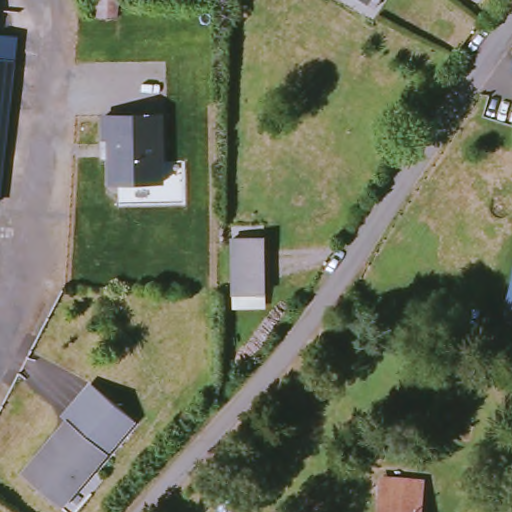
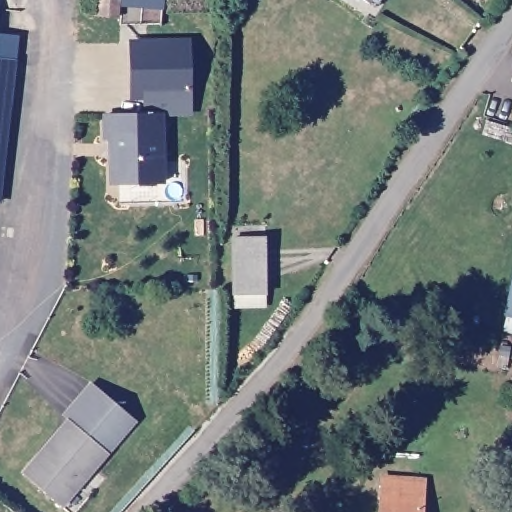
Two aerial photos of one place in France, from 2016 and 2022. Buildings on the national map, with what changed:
unchanged [(104,14),(104,0),(124,0),(123,15),(123,16),(104,17),(104,14)]
unchanged [(374,0),(371,5),(363,0),(374,0)]
new [(128,40),(191,39),(191,100),(130,101),(128,40)]
unchanged [(0,112),(0,56),(6,57),(0,112)]
unchanged [(107,141),(101,141),(101,115),(164,115),(166,185),(108,185),(107,141)]
unchanged [(269,245),(269,297),(238,296),(239,244),(269,245)]
unchanged [(510,313),(512,303),(512,314),(510,313)]
unchanged [(64,507),(25,477),(44,456),(38,451),(68,417),(63,412),(91,381),(113,399),(138,421),(113,451),(64,507)]
unchanged [(424,483),(422,512),(381,512),(385,479),(424,483)]

